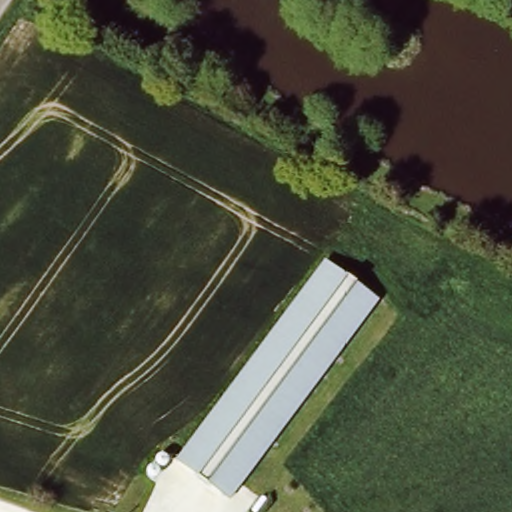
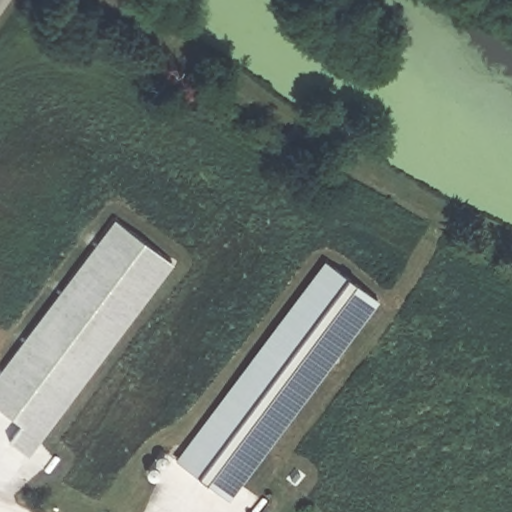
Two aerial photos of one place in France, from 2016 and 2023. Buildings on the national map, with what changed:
new [(30,458),(10,442),(22,426),(0,409),(0,376),(117,219),(177,264),(30,458)]
unchanged [(372,301),(230,501),(184,468),(325,269),(372,301)]

